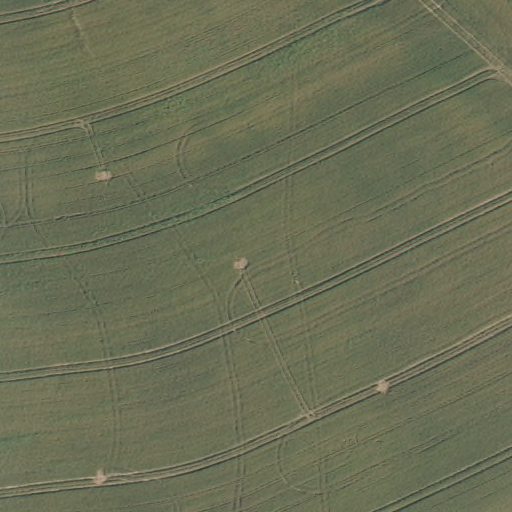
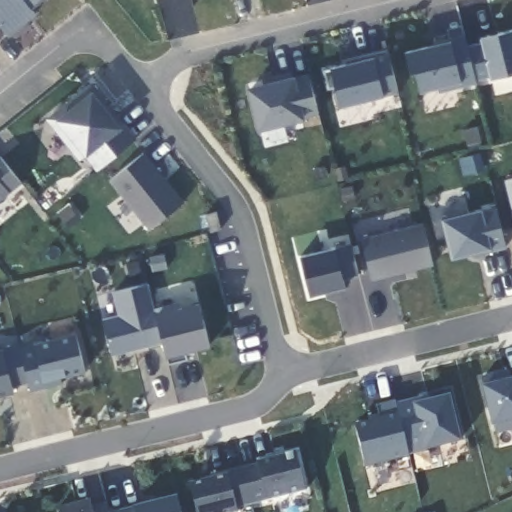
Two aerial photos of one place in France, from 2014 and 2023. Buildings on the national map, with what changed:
new [(30,7),(36,13),(9,35),(0,23),(0,0),(39,0),(30,7)]
new [(439,91),(438,86),(419,90),(406,50),(449,40),(446,27),(462,24),(464,34),(476,83),(439,91)]
new [(339,104),(336,86),(328,87),(324,70),(330,68),(329,65),(347,60),(346,58),(387,49),(388,53),(397,91),(383,95),(339,104)]
new [(260,77),(288,69),(289,76),(306,71),(318,113),(304,118),(258,129),(248,86),(261,82),(260,77)]
new [(84,153),(76,158),(44,118),(89,82),(93,88),(124,127),(136,139),(97,170),(84,153)]
new [(108,179),(144,152),(185,201),(149,230),(108,179)]
new [(22,184),(0,201),(0,156),(22,184)]
new [(512,178),(512,209),(504,179),(512,178)]
new [(506,247),(474,254),(473,252),(452,256),(442,217),(481,210),(497,207),(506,247)]
new [(433,264),(371,281),(360,237),(421,221),(433,264)]
new [(310,294),(301,254),(335,246),(351,242),(359,274),(344,278),(345,286),(310,294)]
new [(103,318),(118,315),(112,290),(148,282),(153,307),(163,342),(111,355),(103,318)]
new [(153,307),(173,302),(174,308),(199,302),(211,345),(184,352),(186,358),(169,363),(153,307)]
new [(61,376),(63,382),(31,389),(28,380),(11,384),(13,392),(0,395),(0,349),(76,332),(86,371),(61,376)]
new [(482,385),(481,376),(510,368),(512,375),(512,430),(496,434),(491,424),(482,385)]
new [(407,451),(397,413),(395,403),(425,395),(426,401),(446,396),(457,439),(407,451)]
new [(407,451),(408,456),(365,466),(355,423),(378,418),(376,404),(394,401),(395,403),(397,413),(407,451)]
new [(258,464),(258,461),(296,451),(307,491),(236,508),(237,512),(198,512),(190,483),(258,464)]
new [(181,512),(108,512),(107,511),(132,505),(177,496),(181,512)]
new [(92,499),(93,504),(105,500),(108,512),(60,512),(58,508),(92,499)]

